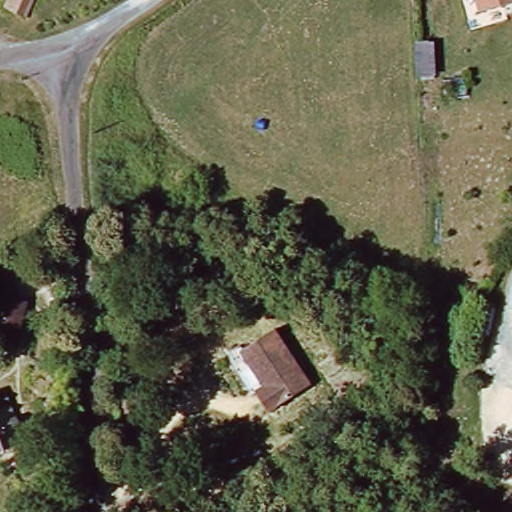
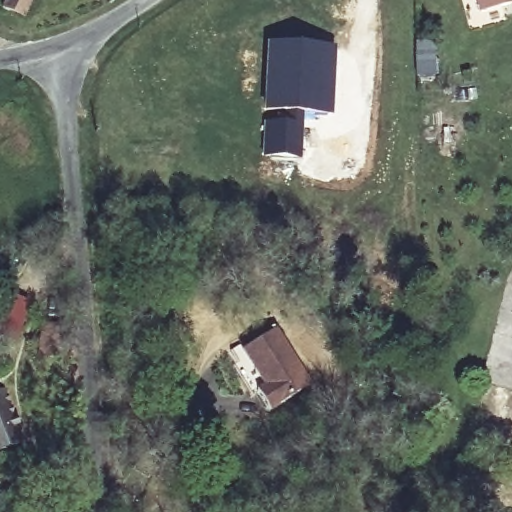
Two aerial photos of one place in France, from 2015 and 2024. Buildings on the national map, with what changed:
unchanged [(25,15),(3,5),(6,0),(32,0),(25,15)]
unchanged [(486,11),(483,0),(512,0),(512,4),(486,11)]
new [(271,47),(333,50),(330,113),(268,110),(271,47)]
new [(301,128),(300,157),(265,156),(266,127),(301,128)]
unchanged [(26,318),(3,340),(0,337),(0,317),(13,304),(26,318)]
unchanged [(60,321),(62,353),(45,354),(43,322),(60,321)]
unchanged [(281,328),(316,386),(275,412),(262,391),(270,385),(248,348),(281,328)]
unchanged [(0,390),(7,387),(27,444),(0,453),(0,390)]

